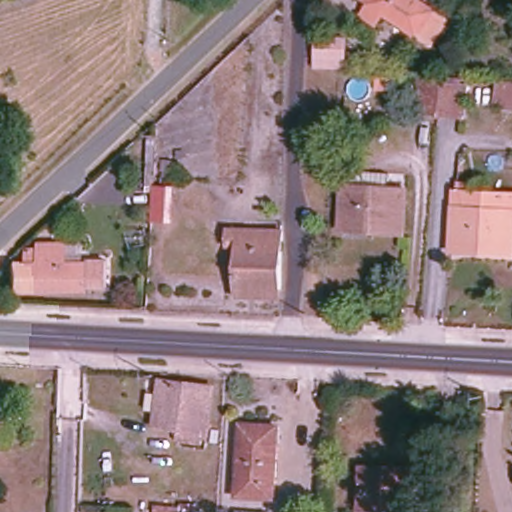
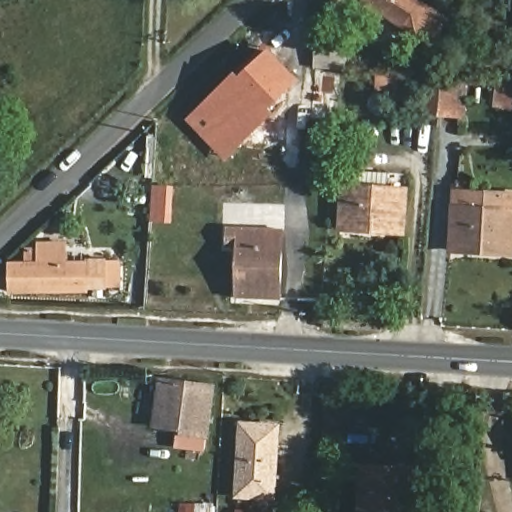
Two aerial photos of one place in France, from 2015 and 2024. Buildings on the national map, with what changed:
unchanged [(450,21),(434,45),(386,16),(382,22),(366,16),(374,2),(370,0),(419,0),(450,21)]
unchanged [(315,29),(348,29),(347,68),(314,69),(315,29)]
new [(277,113),(225,161),(185,120),(235,72),(239,76),(269,47),(302,80),(272,109),(277,113)]
unchanged [(467,117),(454,116),(442,115),(419,113),(421,81),(444,84),(458,85),(470,87),(467,117)]
unchanged [(494,103),(496,94),(512,97),(512,105),(494,103)]
unchanged [(423,119),(420,148),(404,146),(407,117),(423,119)]
unchanged [(391,189),(411,190),(408,235),(376,232),(376,228),(344,225),(348,172),(393,175),(391,189)]
unchanged [(170,188),(169,223),(149,222),(152,187),(170,188)]
unchanged [(481,254),(480,249),(451,246),(454,207),(454,191),(496,194),(512,195),(512,255),(481,254)]
unchanged [(281,231),(279,291),(248,290),(248,300),(235,299),(237,247),(227,247),(228,230),(281,231)]
unchanged [(88,256),(106,257),(106,285),(89,285),(88,287),(9,288),(9,260),(24,260),(24,247),(39,247),(39,239),(65,239),(64,260),(87,260),(88,256)]
unchanged [(217,387),(211,438),(206,438),(205,445),(180,441),(182,429),(159,426),(165,380),(217,387)]
unchanged [(277,427),(273,498),(238,496),(241,425),(277,427)]
unchanged [(432,512),(359,512),(361,468),(433,470),(432,512)]
unchanged [(256,512),(236,512),(236,511),(256,512)]

